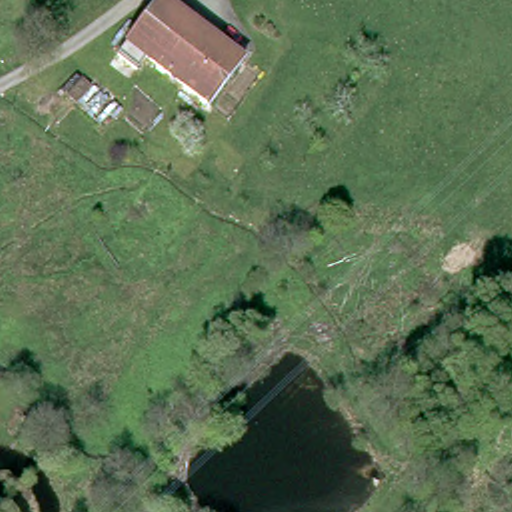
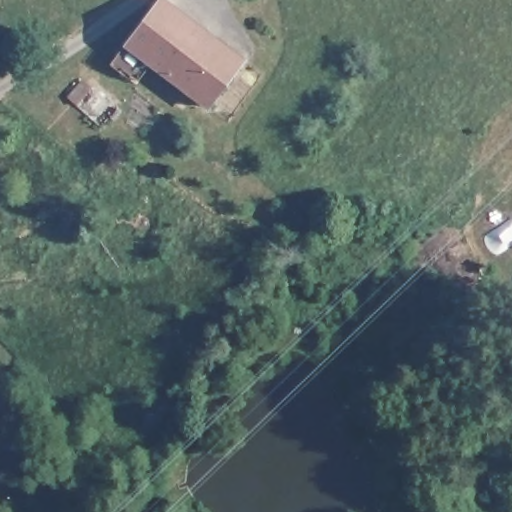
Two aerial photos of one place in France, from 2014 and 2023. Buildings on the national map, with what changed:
unchanged [(241,57),(206,103),(143,54),(126,76),(107,60),(119,45),(159,0),(167,0),(241,57)]

